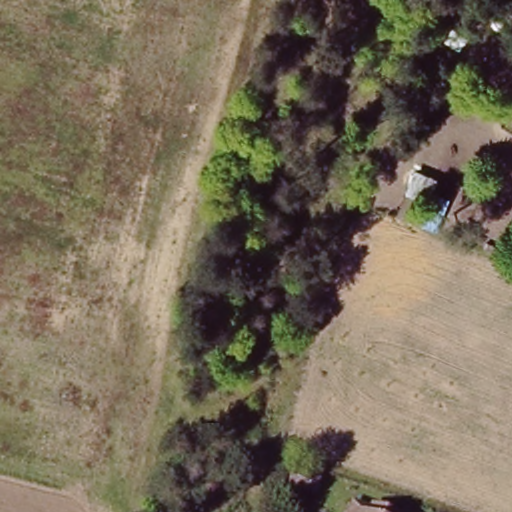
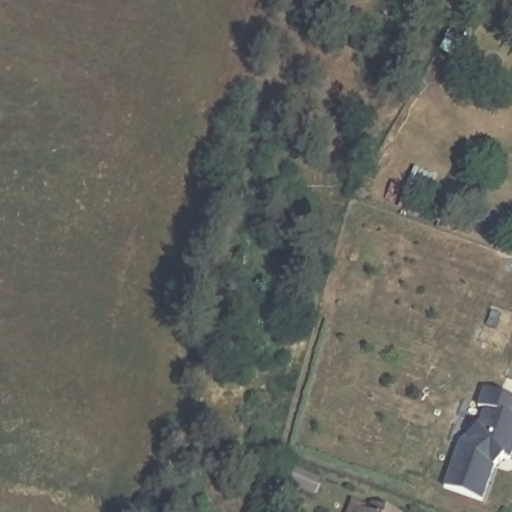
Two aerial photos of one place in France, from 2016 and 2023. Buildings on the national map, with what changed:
new [(482,427),(489,409),(482,406),(489,390),(512,399),(512,461),(507,459),(497,467),(484,501),(447,487),(464,444),(482,427)]
unchanged [(374,501),(403,512),(370,512),(374,501)]

